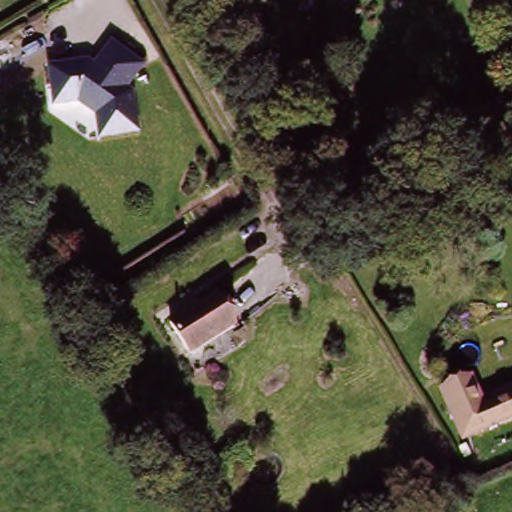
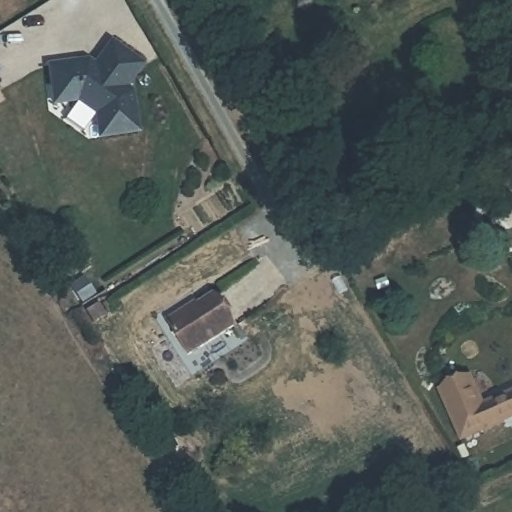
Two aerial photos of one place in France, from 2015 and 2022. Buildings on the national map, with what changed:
unchanged [(342,1),(341,0),(345,0),(342,1)]
unchanged [(147,74),(128,95),(134,99),(136,140),(116,140),(98,141),(96,118),(78,102),(54,103),(52,65),(83,64),(95,63),(100,68),(120,47),(147,74)]
unchanged [(401,167),(412,187),(367,214),(355,192),(401,167)]
unchanged [(215,297),(234,329),(192,354),(173,322),(215,297)]
unchanged [(455,408),(471,402),(490,395),(493,402),(512,396),(512,422),(503,425),(484,432),(469,437),(455,408)]

